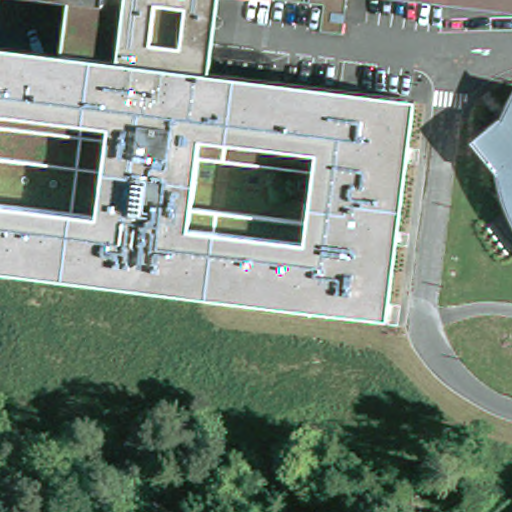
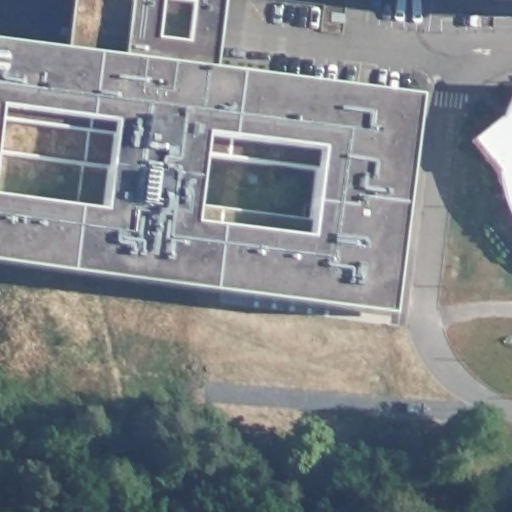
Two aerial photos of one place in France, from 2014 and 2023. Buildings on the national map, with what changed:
unchanged [(70,0),(109,0),(219,0),(207,72),(414,98),(390,317),(0,268),(0,46),(61,54),(70,0)]
unchanged [(512,0),(512,1),(502,0),(512,0)]
unchanged [(512,94),(512,225),(509,219),(499,190),(498,165),(474,139),(503,115),(512,94)]

